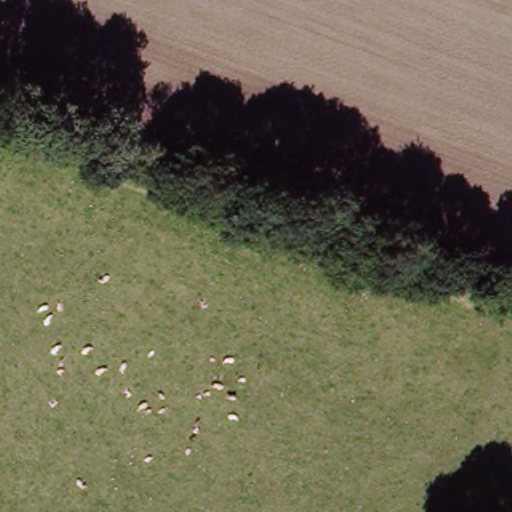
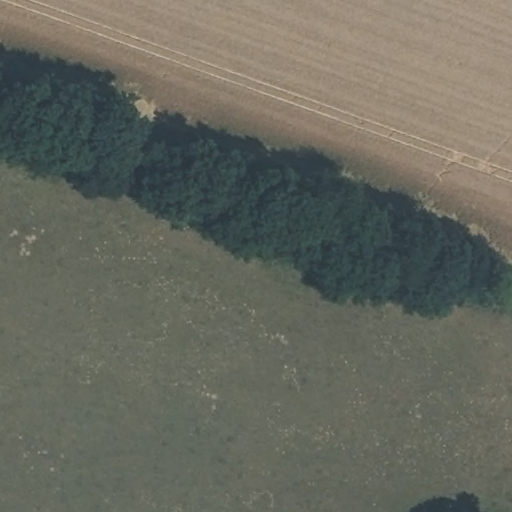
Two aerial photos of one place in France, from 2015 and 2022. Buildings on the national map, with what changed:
[]

